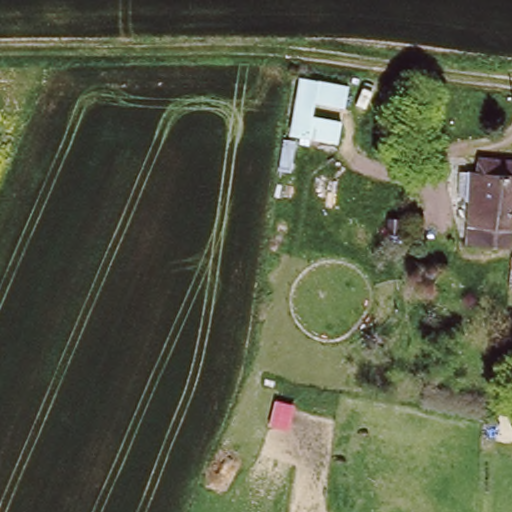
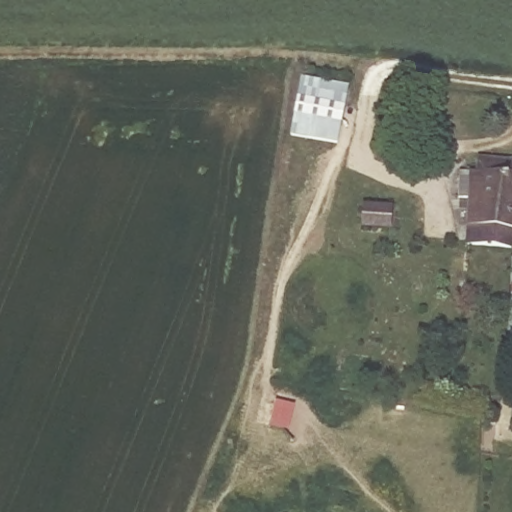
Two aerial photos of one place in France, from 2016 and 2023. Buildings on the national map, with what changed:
unchanged [(349,82),(346,102),(315,98),(313,114),(345,117),(341,138),(296,131),(304,75),(349,82)]
unchanged [(510,237),(465,235),(465,207),(456,207),(457,182),(466,182),(475,182),(475,167),(512,169),(512,195),(510,237)]

